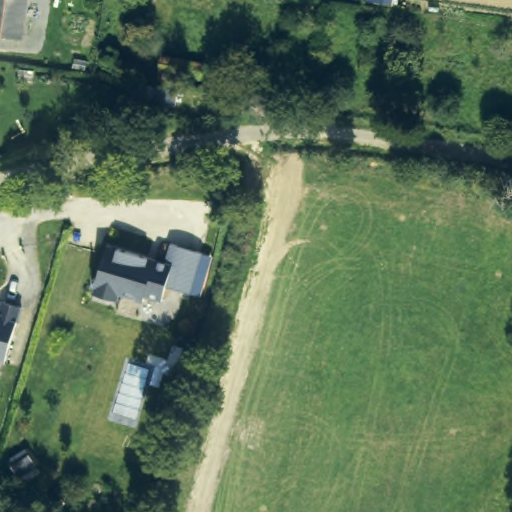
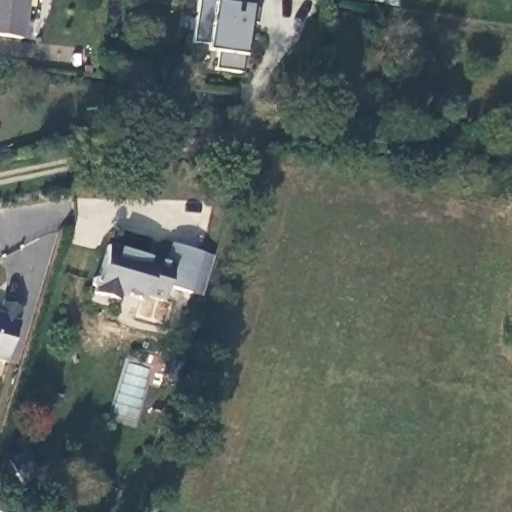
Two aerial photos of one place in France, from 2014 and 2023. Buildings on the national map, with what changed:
unchanged [(0,38),(0,0),(23,0),(18,41),(0,38)]
new [(230,5),(231,0),(260,0),(257,25),(248,24),(244,56),(240,73),(215,69),(218,53),(205,51),(207,45),(193,42),(198,0),(201,0),(213,2),(230,5)]
unchanged [(90,290),(93,283),(96,284),(106,251),(164,267),(169,248),(200,257),(189,298),(164,291),(160,305),(144,301),(143,305),(119,298),(116,305),(93,299),(94,291),(90,290)]
unchanged [(23,307),(7,362),(0,360),(0,316),(4,302),(23,307)]

